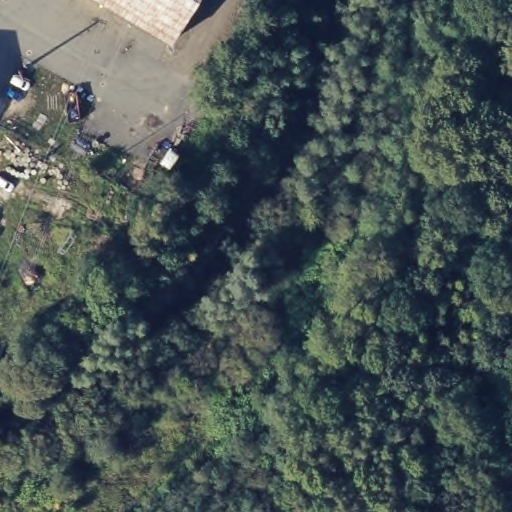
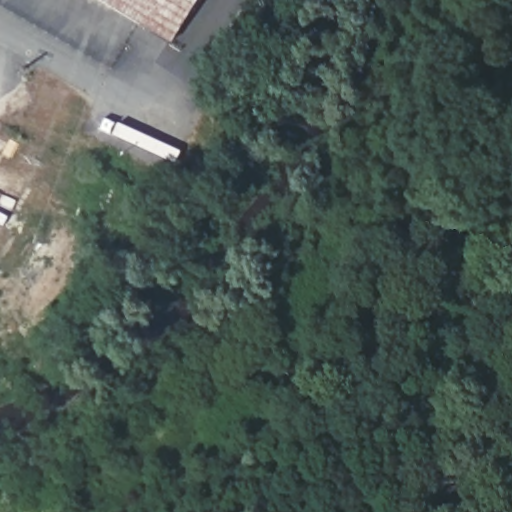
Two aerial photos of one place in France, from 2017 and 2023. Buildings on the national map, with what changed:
unchanged [(169,43),(97,0),(195,0),(169,43)]

